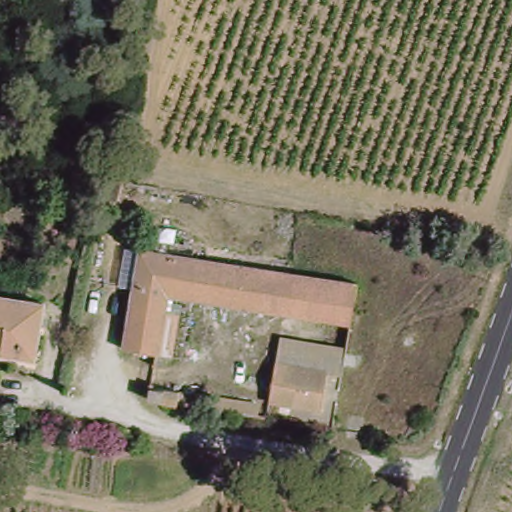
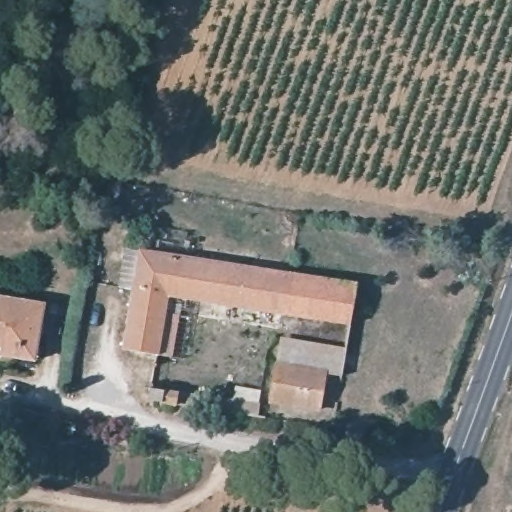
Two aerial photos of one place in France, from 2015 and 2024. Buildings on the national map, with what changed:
unchanged [(216,299),(166,291),(157,348),(123,342),(140,223),(157,226),(153,250),(221,261),(216,299)]
unchanged [(283,288),(283,290),(280,309),(216,299),(221,261),(226,262),(286,270),(283,288)]
unchanged [(345,318),(345,319),(280,309),(283,290),(286,270),(351,281),(345,318)]
unchanged [(30,356),(0,352),(0,295),(39,301),(30,356)]
unchanged [(321,406),(271,397),(281,336),(346,349),(343,370),(326,368),(321,406)]
unchanged [(178,404),(177,406),(162,402),(146,395),(151,384),(181,395),(178,404)]

